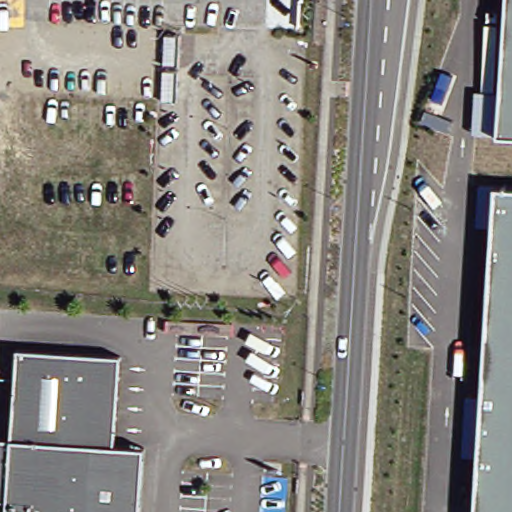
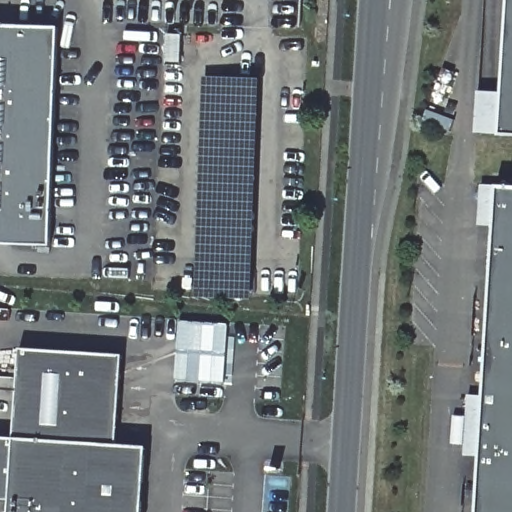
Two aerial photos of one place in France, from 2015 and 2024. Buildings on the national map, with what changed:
new [(473,132),(475,90),(502,92),(507,0),(512,0),(512,137),(498,136),(473,132)]
new [(57,26),(49,245),(0,243),(0,24),(57,26)]
new [(204,78),(260,80),(252,300),(196,298),(204,78)]
unchanged [(512,512),(476,512),(496,186),(512,188),(512,512)]
unchanged [(4,498),(0,498),(0,435),(9,436),(15,346),(118,353),(112,443),(142,445),(137,512),(3,512),(4,498)]

